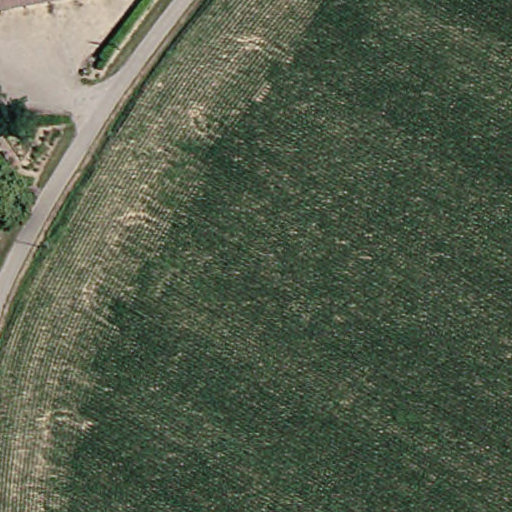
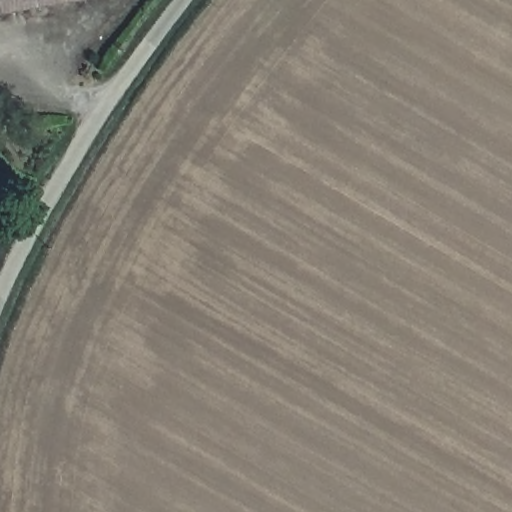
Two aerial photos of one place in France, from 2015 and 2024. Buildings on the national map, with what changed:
unchanged [(0,10),(0,0),(52,0),(0,10)]

